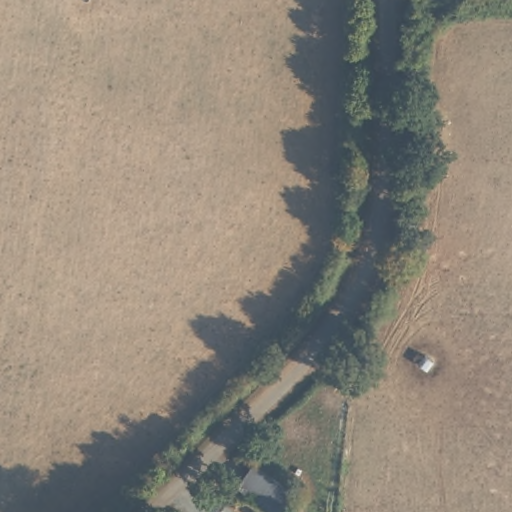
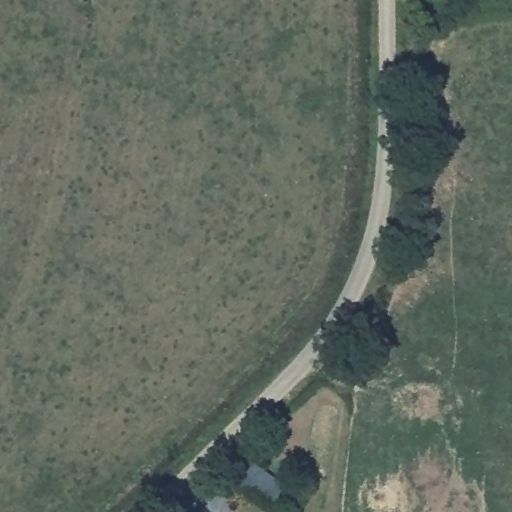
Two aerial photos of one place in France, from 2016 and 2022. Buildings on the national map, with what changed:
unchanged [(251,461),(297,494),(285,512),(284,512),(237,484),(251,461)]

